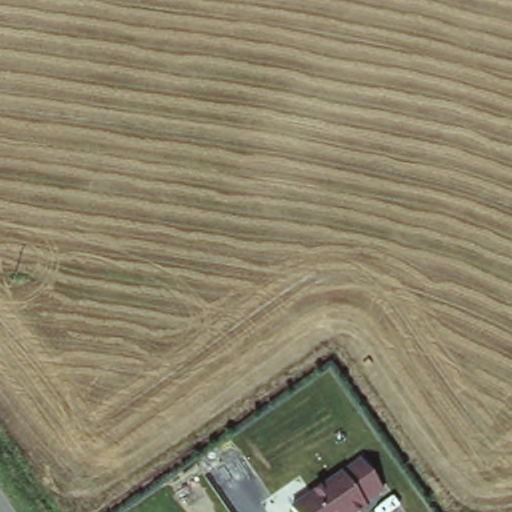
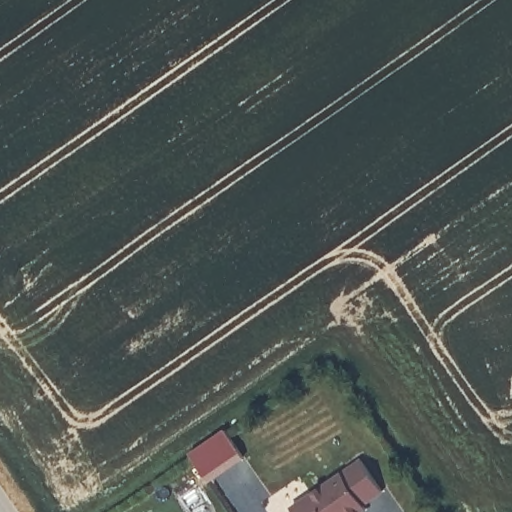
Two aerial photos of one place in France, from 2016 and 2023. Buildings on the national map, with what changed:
new [(190,454),(225,430),(245,459),(211,483),(190,454)]
unchanged [(386,492),(366,503),(368,508),(363,512),(296,512),(293,508),(361,458),(386,492)]

